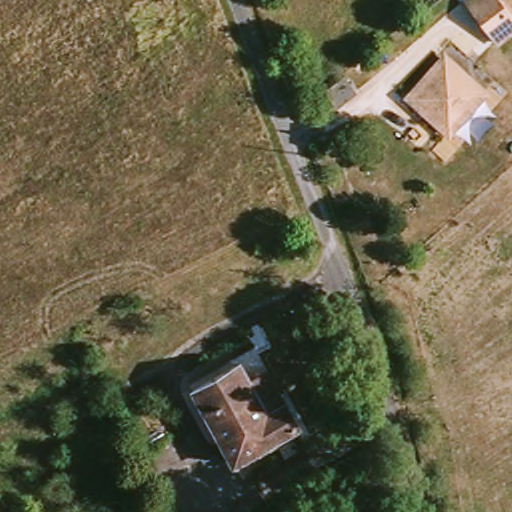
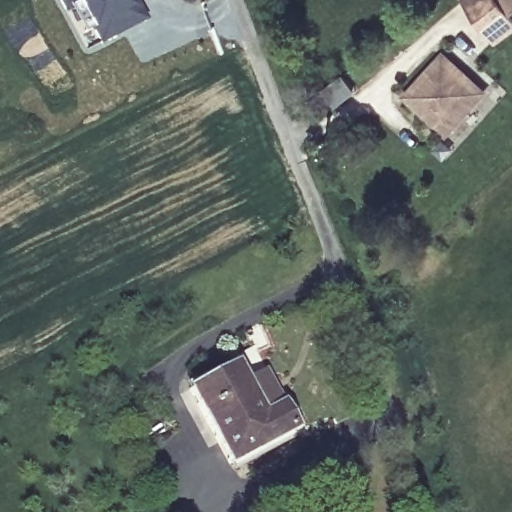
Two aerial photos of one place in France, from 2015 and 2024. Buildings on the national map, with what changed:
new [(59,0),(137,0),(148,20),(101,45),(86,51),(63,9),(59,0)]
unchanged [(512,24),(512,35),(497,47),(463,3),(467,0),(512,0),(512,21),(510,22),(512,24)]
unchanged [(448,132),(413,100),(448,61),(484,93),(448,132)]
unchanged [(365,107),(345,125),(330,106),(350,90),(365,107)]
unchanged [(230,467),(189,388),(255,353),(296,432),(230,467)]

